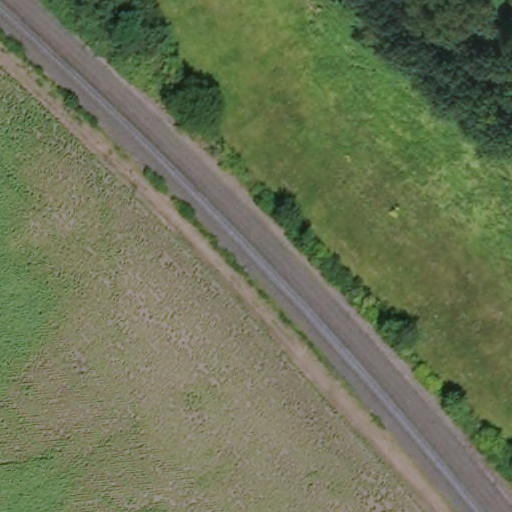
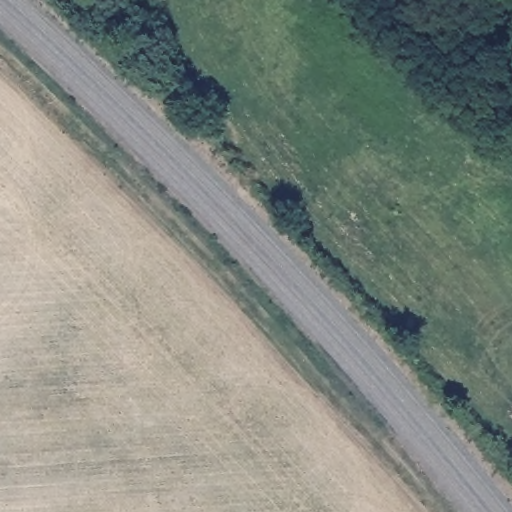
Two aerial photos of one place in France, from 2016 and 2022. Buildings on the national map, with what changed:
[]

